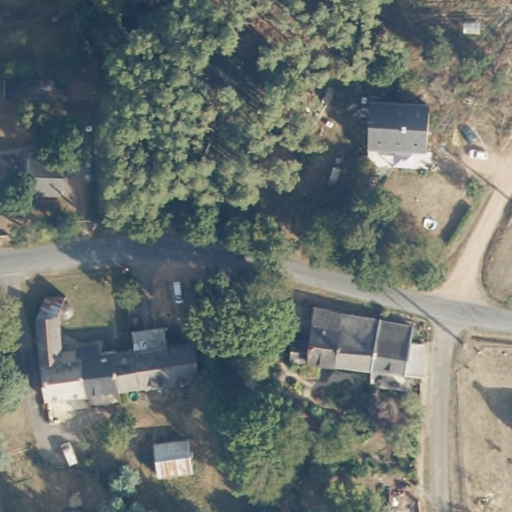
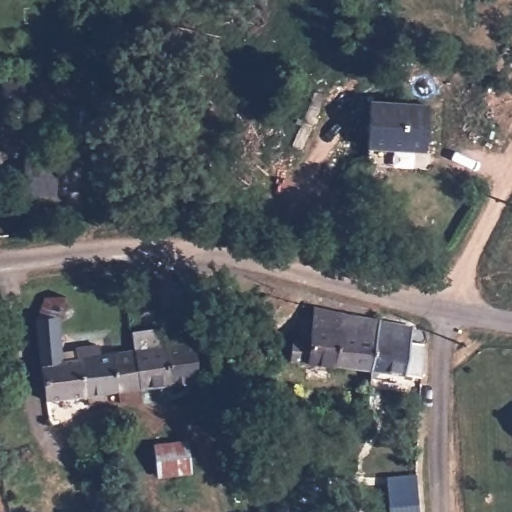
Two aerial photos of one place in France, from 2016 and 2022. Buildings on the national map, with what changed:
unchanged [(427,104),(424,150),(366,147),(368,101),(427,104)]
unchanged [(57,159),(56,177),(24,175),(25,157),(57,159)]
unchanged [(42,297),(61,294),(63,303),(67,305),(72,311),(65,318),(56,317),(60,361),(41,364),(32,318),(42,297)]
unchanged [(295,340),(313,343),(319,314),(345,319),(338,369),(327,368),(311,366),(293,364),(295,340)]
unchanged [(338,369),(345,319),(381,327),(376,374),(376,375),(338,369)]
unchanged [(376,375),(376,374),(381,327),(417,333),(416,349),(423,350),(423,381),(376,375)]
unchanged [(15,344),(24,369),(6,376),(0,359),(0,348),(15,344)]
unchanged [(195,344),(202,383),(172,386),(170,347),(195,344)]
unchanged [(172,386),(132,390),(117,392),(114,355),(133,352),(170,347),(172,386)]
unchanged [(117,392),(86,396),(80,359),(114,355),(117,392)]
unchanged [(60,361),(80,359),(86,396),(46,402),(41,364),(60,361)]
unchanged [(158,474),(157,443),(190,440),(192,471),(158,474)]
demolished [(417,479),(421,504),(387,508),(383,482),(417,479)]
unchanged [(69,502),(85,500),(86,512),(67,512),(66,503),(69,502)]
unchanged [(425,512),(391,512),(425,509),(425,512)]

